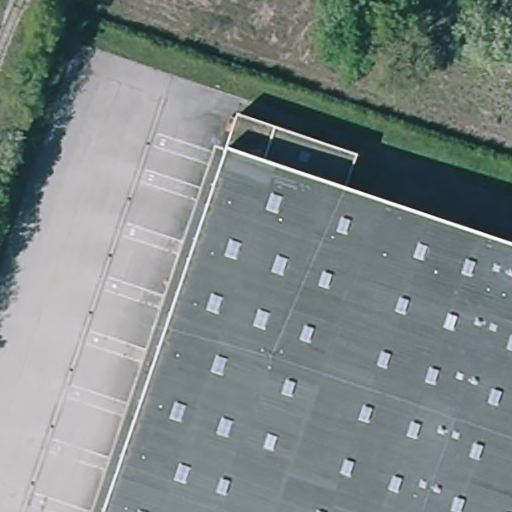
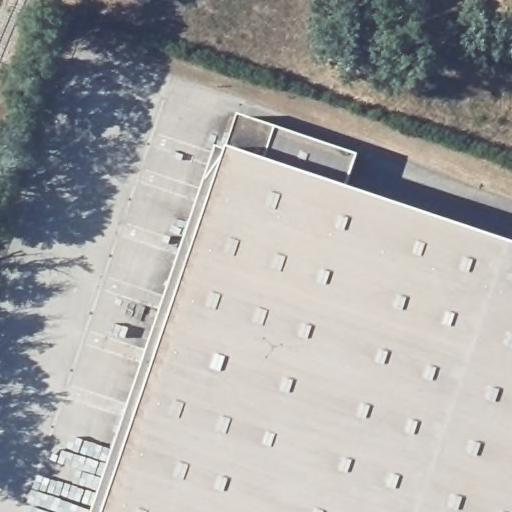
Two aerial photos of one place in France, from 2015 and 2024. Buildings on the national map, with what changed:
unchanged [(364,155),(351,191),(512,247),(512,512),(110,512),(244,115),(364,155)]

